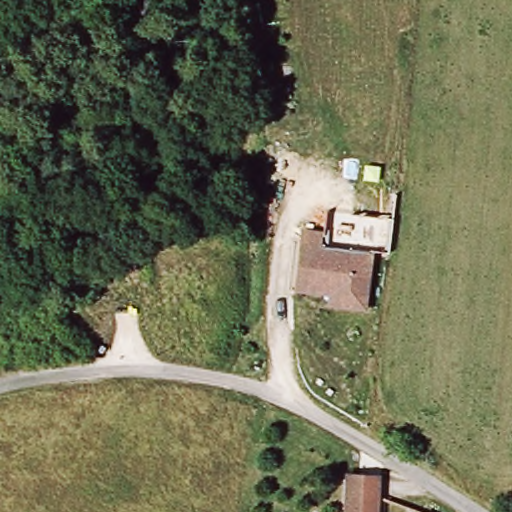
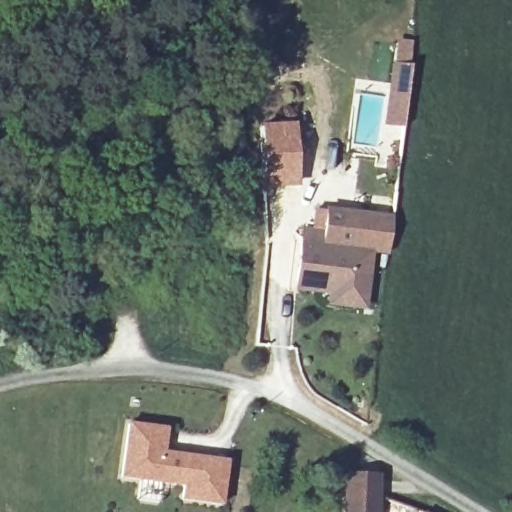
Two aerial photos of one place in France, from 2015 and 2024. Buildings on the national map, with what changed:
new [(387,67),(405,69),(402,101),(385,100),(387,67)]
new [(294,122),(298,188),(261,190),(256,126),(294,122)]
unchanged [(291,300),(297,242),(316,244),(316,255),(365,261),(359,317),(324,314),(325,303),(291,300)]
new [(226,483),(224,483),(222,505),(183,500),(184,485),(123,478),(129,425),(166,429),(165,454),(211,459),(228,461),(226,483)]
unchanged [(374,512),(349,512),(352,477),(377,480),(374,512)]

